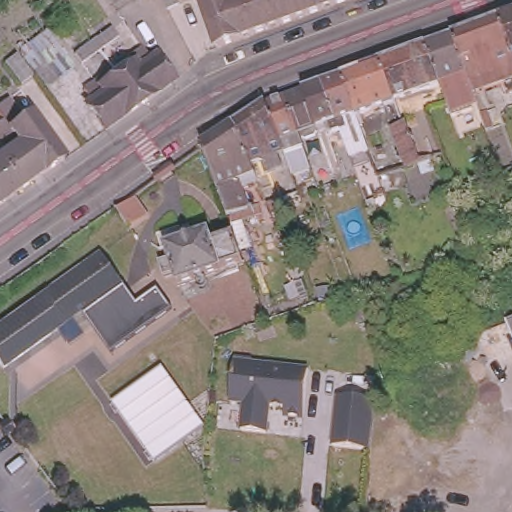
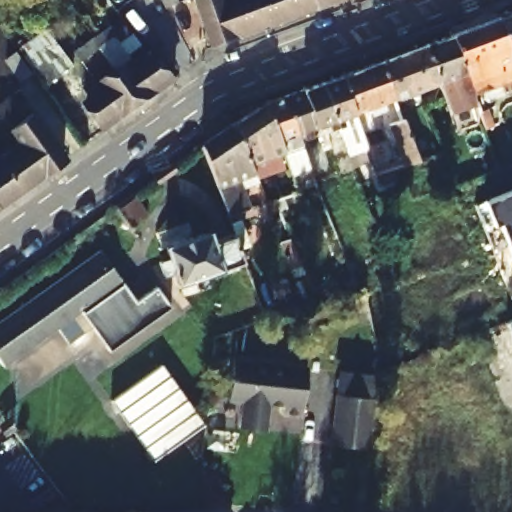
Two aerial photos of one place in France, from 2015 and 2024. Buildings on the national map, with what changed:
unchanged [(242,47),(218,57),(198,7),(205,5),(203,0),(222,0),(242,47)]
unchanged [(238,8),(252,3),(257,2),(270,36),(242,47),(222,0),(235,0),(238,8)]
unchanged [(297,26),(270,36),(257,2),(252,3),(251,0),(287,0),(297,26)]
unchanged [(322,16),(297,26),(287,0),(316,0),(322,16)]
unchanged [(348,6),(322,16),(316,0),(346,0),(348,6)]
unchanged [(348,6),(346,0),(366,0),(348,6)]
unchanged [(512,11),(512,60),(496,17),(512,11)]
unchanged [(512,60),(512,71),(475,83),(467,64),(459,66),(448,35),(496,17),(512,60)]
unchanged [(36,71),(20,83),(3,60),(45,27),(74,67),(48,87),(36,71)]
unchanged [(475,109),(450,118),(443,103),(437,85),(422,45),(448,35),(459,66),(475,109)]
unchanged [(388,101),(373,63),(422,45),(437,85),(388,101)]
unchanged [(100,88),(97,83),(132,61),(137,65),(154,54),(177,85),(100,133),(80,100),(100,88)]
unchanged [(300,138),(297,132),(292,134),(278,98),(319,83),(337,76),(373,63),(388,101),(351,114),(340,117),(342,126),(336,129),(328,131),(325,122),(307,128),(309,135),(300,138)]
unchanged [(278,98),(292,134),(309,177),(300,180),(296,171),(287,174),(280,154),(278,151),(261,105),(278,98)]
unchanged [(232,125),(261,105),(278,151),(280,154),(247,167),(232,125)]
unchanged [(19,141),(12,131),(38,112),(70,155),(0,205),(0,154),(19,141)]
unchanged [(427,158),(407,164),(392,125),(412,118),(427,158)]
unchanged [(492,128),(487,130),(485,122),(490,120),(492,128)]
unchanged [(225,221),(197,148),(232,125),(247,167),(251,176),(237,182),(247,211),(225,221)]
unchanged [(295,193),(269,203),(262,205),(257,192),(290,180),(295,193)]
new [(495,224),(485,201),(512,190),(512,254),(500,222),(495,224)]
unchanged [(147,216),(129,229),(127,226),(117,211),(118,210),(135,198),(147,216)]
unchanged [(157,266),(168,263),(165,253),(210,237),(213,248),(232,241),(241,265),(177,287),(172,274),(161,278),(157,266)]
unchanged [(0,360),(0,325),(99,251),(121,280),(5,367),(0,360)]
unchanged [(85,314),(126,285),(138,301),(156,288),(170,308),(110,352),(85,314)]
unchanged [(512,318),(512,341),(504,321),(512,318)]
unchanged [(239,403),(227,401),(232,358),(308,366),(302,416),(271,411),(268,430),(237,427),(239,403)]
unchanged [(150,459),(110,399),(157,366),(202,424),(150,459)]
unchanged [(327,443),(334,395),(375,400),(370,448),(327,443)]

